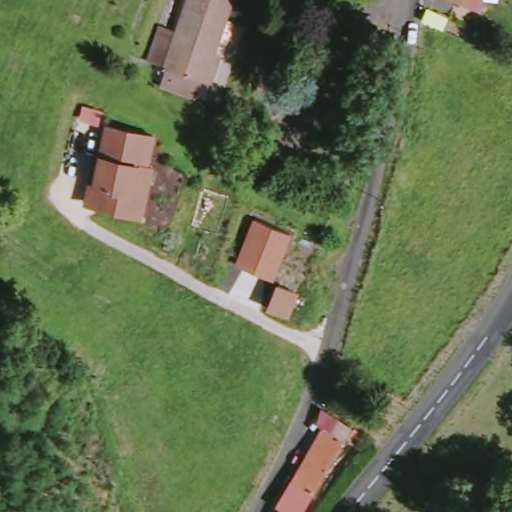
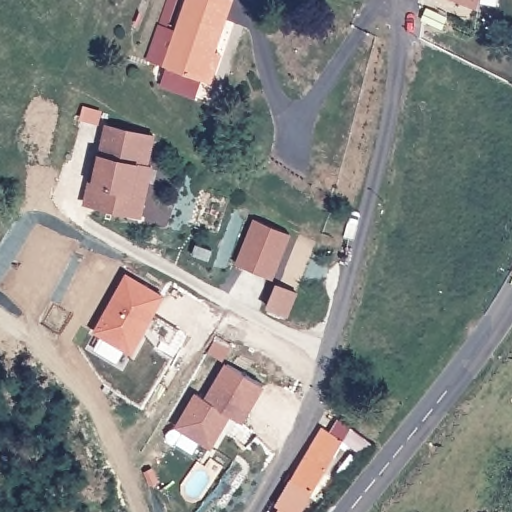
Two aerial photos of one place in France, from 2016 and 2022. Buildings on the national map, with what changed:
unchanged [(216,91),(209,88),(153,64),(167,31),(185,39),(199,0),(226,0),(242,6),(220,61),(227,64),(216,91)]
unchanged [(480,9),(454,0),(481,0),(480,9)]
unchanged [(206,88),(200,104),(167,90),(172,74),(206,88)]
unchanged [(92,184),(107,125),(154,136),(146,168),(150,169),(147,182),(139,216),(102,208),(87,204),(92,184)]
unchanged [(253,221),(290,235),(273,281),(235,264),(253,221)]
new [(95,331),(125,274),(165,295),(134,353),(95,331)]
unchanged [(283,289),(302,296),(292,319),(273,311),(283,289)]
new [(177,427),(195,395),(204,400),(225,364),(265,388),(245,422),(232,415),(212,449),(177,427)]
unchanged [(301,512),(286,512),(277,507),(292,481),(291,480),(321,428),(343,441),(301,512)]

